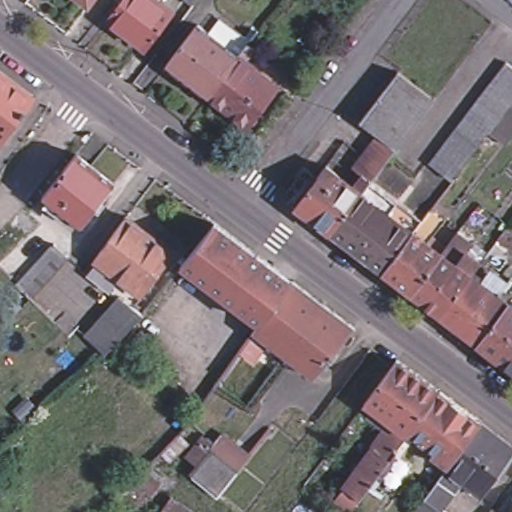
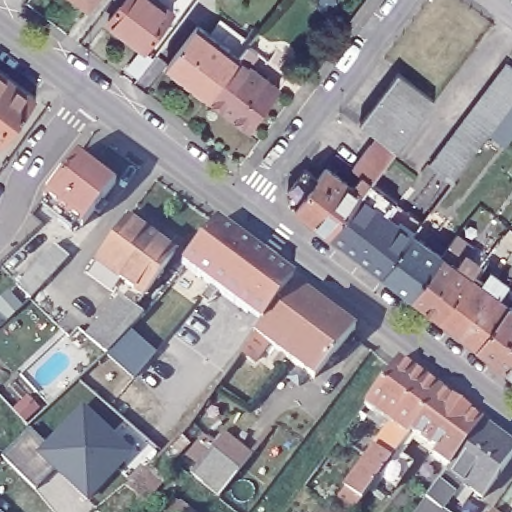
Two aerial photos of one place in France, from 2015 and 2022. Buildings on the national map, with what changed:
unchanged [(86,0),(95,0),(92,4),(86,0)]
unchanged [(154,0),(172,13),(145,49),(107,20),(122,0),(154,0)]
unchanged [(195,0),(190,6),(181,0),(195,0)]
unchanged [(202,95),(162,65),(192,25),(233,55),(242,44),(284,74),(275,86),(244,127),(202,95)]
unchanged [(512,66),(512,127),(505,136),(492,128),(452,181),(428,163),(505,60),(512,66)]
unchanged [(432,98),(393,149),(374,135),(355,120),(393,68),(432,98)]
unchanged [(2,140),(0,138),(0,69),(37,95),(2,140)]
unchanged [(410,295),(382,273),(328,233),(295,207),(316,179),(324,167),(349,185),(357,175),(350,169),(374,135),(393,149),(368,181),(384,192),(396,201),(422,221),(413,234),(441,255),(455,235),(471,247),(467,253),(480,262),(470,275),(508,305),(477,345),(439,316),(410,295)]
unchanged [(75,153),(113,182),(82,225),(42,196),(75,153)]
unchanged [(170,257),(137,300),(90,264),(122,220),(170,257)]
unchanged [(261,262),(230,303),(188,271),(178,263),(210,224),(220,230),(261,261),(261,262)]
unchanged [(69,255),(31,296),(30,297),(16,284),(18,281),(55,243),(69,255)]
unchanged [(286,280),(256,322),(230,303),(261,262),(261,261),(286,280)]
unchanged [(298,329),(295,326),(276,351),(250,331),(256,322),(286,280),(318,305),(298,329)]
unchanged [(142,312),(105,352),(90,338),(126,300),(142,312)]
unchanged [(349,328),(309,376),(280,354),(276,351),(295,326),(298,329),(318,305),(349,328)]
unchanged [(512,371),(477,345),(508,305),(512,307),(512,371)]
unchanged [(364,398),(397,355),(440,387),(411,426),(408,430),(398,443),(383,463),(351,508),(334,495),(381,430),(355,410),(364,398)]
unchanged [(440,387),(481,418),(448,461),(432,450),(435,445),(411,426),(440,387)]
new [(46,444),(83,407),(130,453),(87,497),(62,473),(65,470),(58,463),(35,487),(2,455),(29,427),(46,444)]
unchanged [(425,492),(445,465),(448,461),(481,418),(512,441),(512,450),(482,492),(462,477),(442,503),(454,512),(411,512),(425,492)]
unchanged [(222,485),(197,463),(217,439),(242,460),(222,485)]
unchanged [(172,497),(191,512),(164,512),(162,510),(172,497)]
unchanged [(490,505),(500,512),(486,512),(490,505)]
new [(3,512),(0,512),(0,509),(3,512)]

